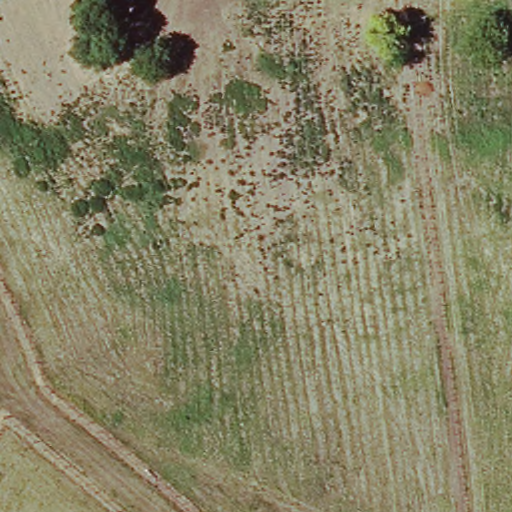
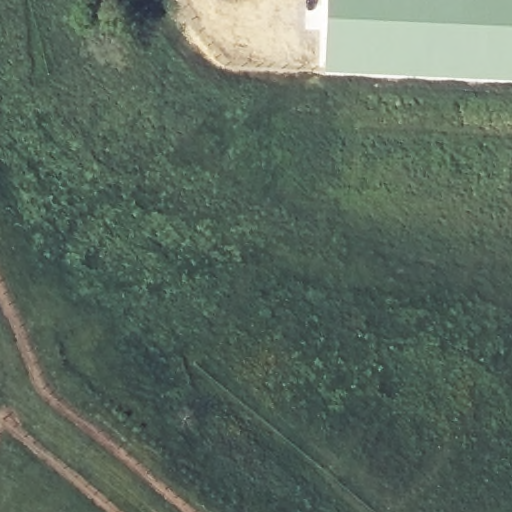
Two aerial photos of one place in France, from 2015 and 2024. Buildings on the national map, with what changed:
new [(512,0),(512,80),(321,73),(324,0),(512,0)]

